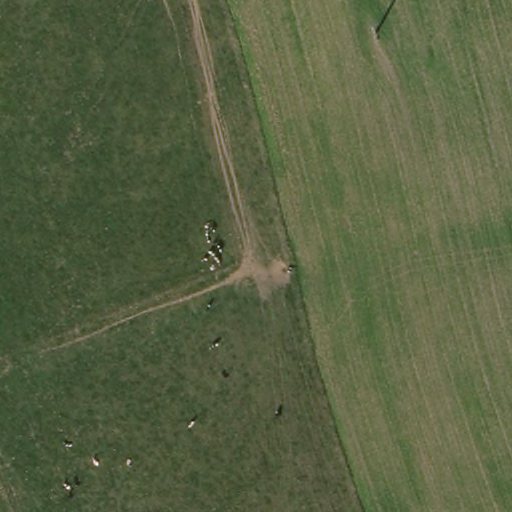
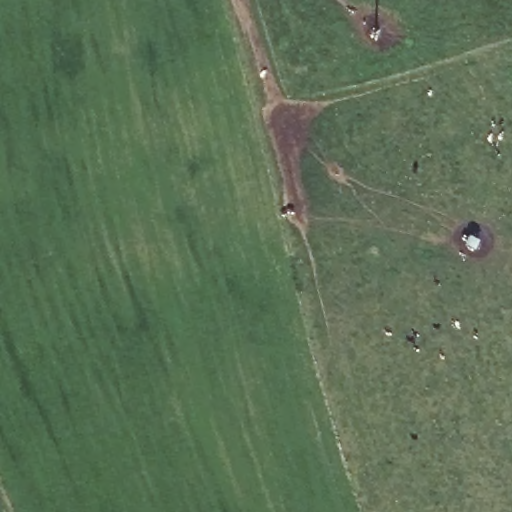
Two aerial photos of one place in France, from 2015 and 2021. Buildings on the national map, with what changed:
[]

